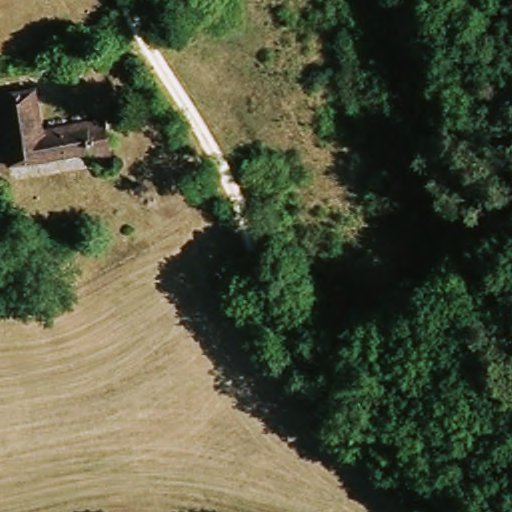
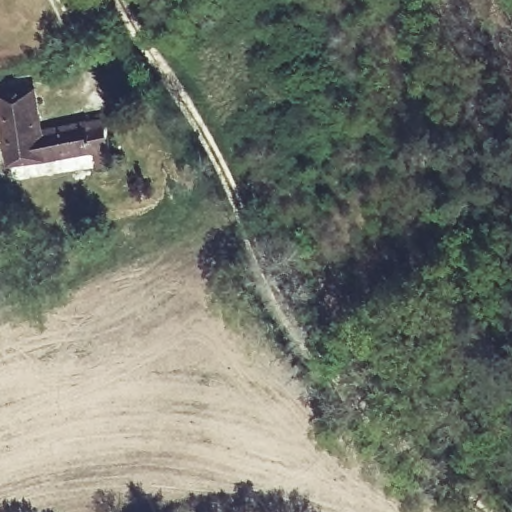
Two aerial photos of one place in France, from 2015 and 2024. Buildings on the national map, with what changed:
unchanged [(11,178),(11,177),(0,135),(0,96),(33,87),(45,132),(102,119),(118,170),(103,173),(99,156),(11,178)]

